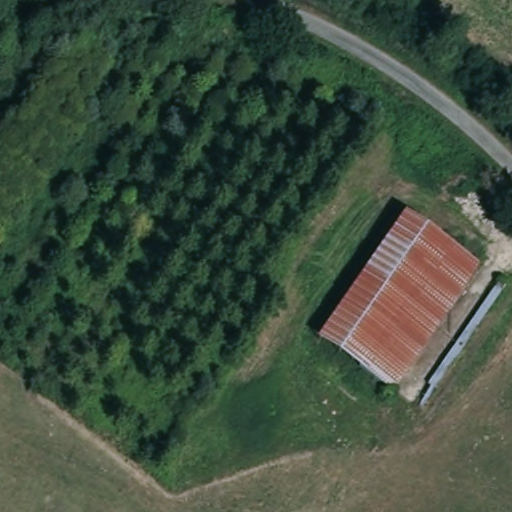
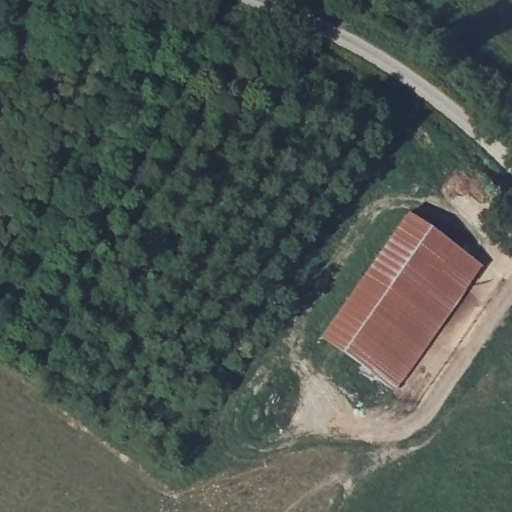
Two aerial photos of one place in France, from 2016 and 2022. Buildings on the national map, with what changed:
unchanged [(392,391),(318,340),(404,216),(478,267),(392,391)]

